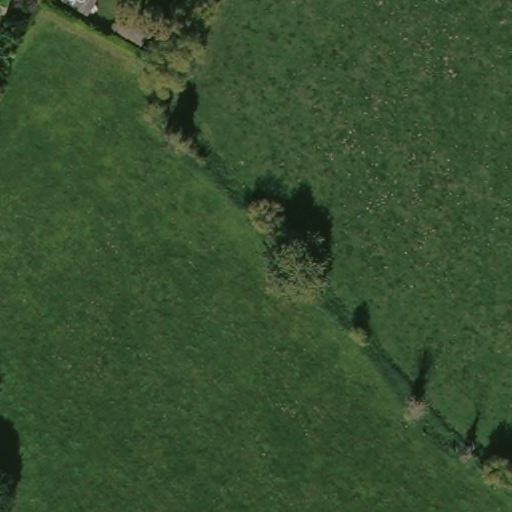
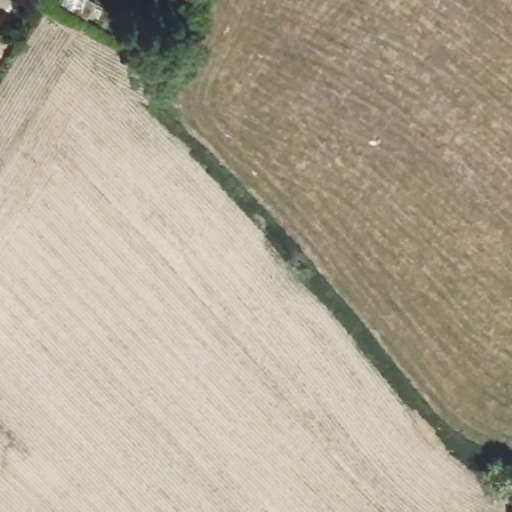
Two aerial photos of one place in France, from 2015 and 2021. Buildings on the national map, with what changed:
unchanged [(145,17),(137,31),(110,16),(117,2),(145,17)]

